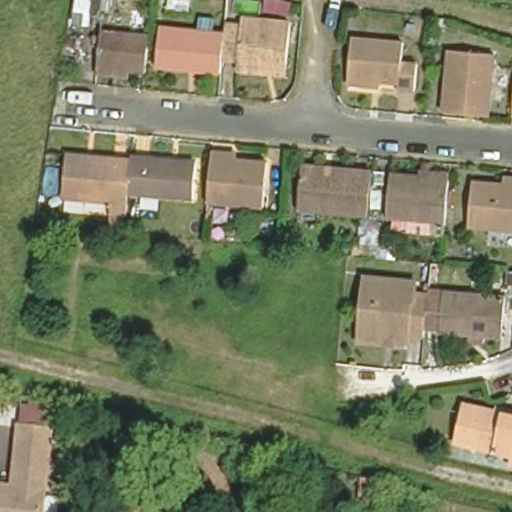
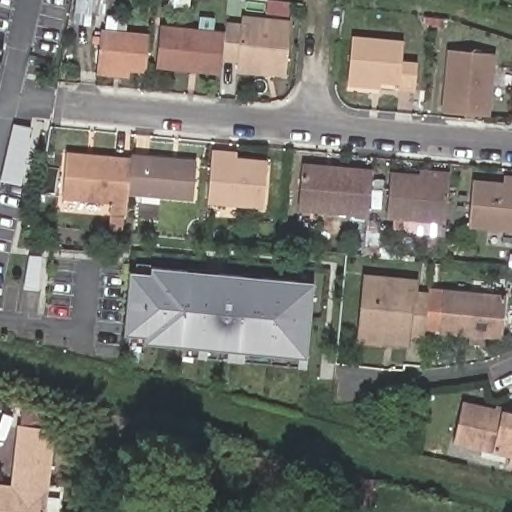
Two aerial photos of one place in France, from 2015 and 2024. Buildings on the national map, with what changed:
unchanged [(260,67),(236,65),(237,56),(220,54),(222,35),(223,30),(223,24),(223,23),(239,24),(241,13),(289,18),(285,60),(284,70),(260,67)]
unchanged [(155,62),(159,24),(223,30),(222,35),(220,54),(220,56),(219,68),(219,69),(155,62)]
unchanged [(96,70),(96,61),(100,30),(146,34),(146,42),(144,66),(126,65),(126,73),(96,70)]
unchanged [(342,85),(342,83),(342,77),(344,58),(345,38),(397,42),(395,61),(411,64),(410,91),(392,90),(393,82),(375,81),(374,90),(341,86),(342,85)]
unchanged [(456,114),(439,113),(446,50),(490,54),(485,110),(484,117),(456,114)]
new [(1,181),(15,124),(31,129),(21,186),(1,181)]
unchanged [(230,151),(236,152),(235,158),(267,161),(263,206),(206,200),(211,150),(230,151)]
unchanged [(104,213),(105,201),(58,196),(62,153),(124,159),(122,188),(121,191),(120,214),(104,213)]
unchanged [(191,161),(187,197),(121,191),(122,188),(124,159),(125,155),(191,161)]
unchanged [(298,207),(302,164),(372,171),(372,174),(368,213),(298,207)]
unchanged [(439,225),(439,220),(384,215),(387,172),(418,175),(418,168),(449,171),(448,178),(444,226),(439,225)]
unchanged [(466,226),(470,180),(503,184),(503,178),(510,179),(512,179),(512,230),(466,226)]
new [(307,358),(145,344),(145,335),(125,334),(131,272),(150,274),(151,267),(313,281),(307,358)]
unchanged [(353,342),(354,329),(358,277),(410,282),(410,295),(423,296),(420,330),(420,335),(405,334),(404,347),(353,342)]
unchanged [(464,342),(465,334),(420,330),(423,296),(424,289),(500,295),(496,337),(479,336),(478,343),(464,342)]
demolished [(234,383),(231,398),(225,423),(177,410),(184,385),(188,369),(234,383)]
demolished [(315,412),(313,420),(306,447),(266,435),(272,409),(274,400),(315,412)]
unchanged [(506,463),(508,455),(451,442),(459,405),(492,412),(493,407),(512,412),(512,464),(506,463)]
unchanged [(0,485),(10,486),(19,425),(51,428),(41,512),(0,512),(0,485)]
unchanged [(267,470),(264,504),(243,502),(247,468),(267,470)]

